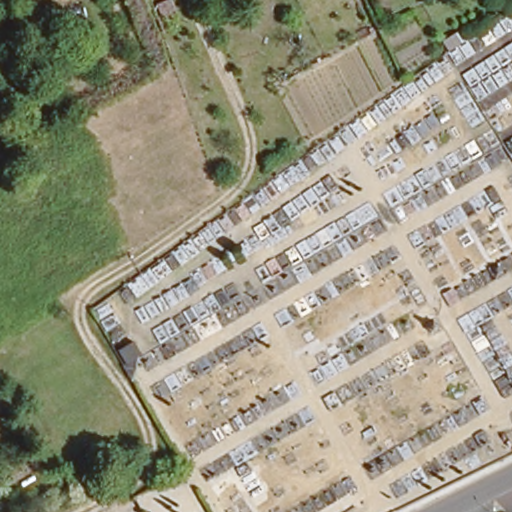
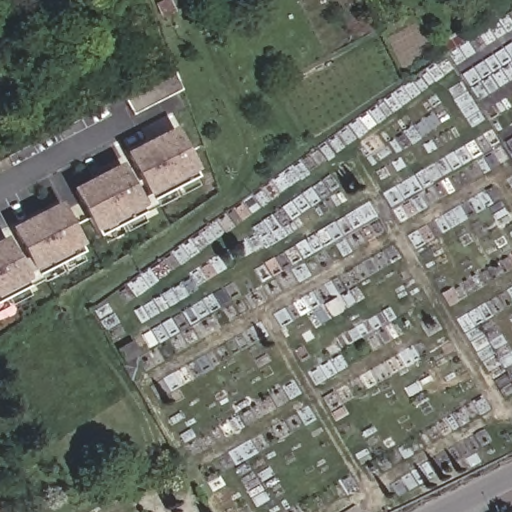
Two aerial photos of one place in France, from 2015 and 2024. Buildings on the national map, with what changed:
new [(133,115),(124,96),(176,70),(182,90),(133,115)]
new [(148,196),(125,154),(175,126),(198,170),(148,196)]
new [(94,231),(72,189),(121,164),(142,206),(94,231)]
new [(32,270),(10,228),(60,202),(82,245),(32,270)]
new [(0,239),(6,236),(29,280),(0,295),(0,239)]

